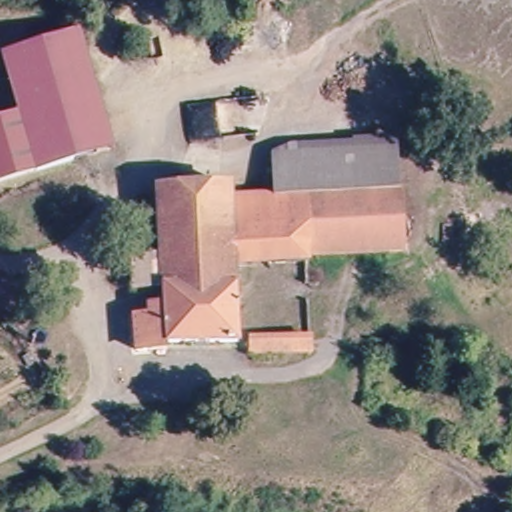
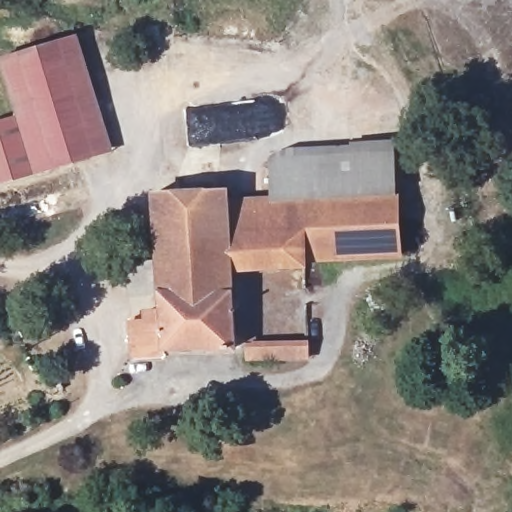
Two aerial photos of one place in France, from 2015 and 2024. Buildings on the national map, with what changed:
unchanged [(76,31),(110,147),(71,161),(40,43),(76,31)]
unchanged [(0,181),(0,117),(14,113),(0,60),(0,56),(40,43),(71,161),(0,181)]
unchanged [(267,198),(266,157),(390,151),(392,192),(267,198)]
unchanged [(296,227),(155,239),(151,188),(224,186),(225,199),(267,198),(392,192),(394,249),(297,255),(296,227)]
unchanged [(233,344),(158,348),(158,346),(156,306),(156,288),(122,288),(122,261),(156,259),(155,239),(296,227),(297,255),(297,262),(230,267),(233,344)]
unchanged [(140,347),(139,356),(122,356),(122,320),(136,320),(136,307),(156,306),(158,346),(140,347)]
unchanged [(250,345),(251,341),(287,339),(307,338),(309,352),(289,353),(250,355),(250,345)]

